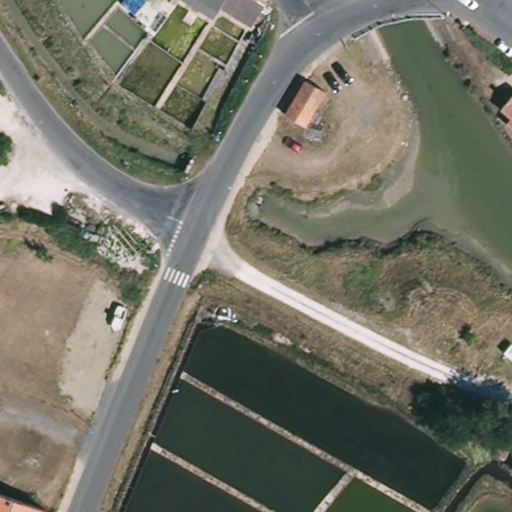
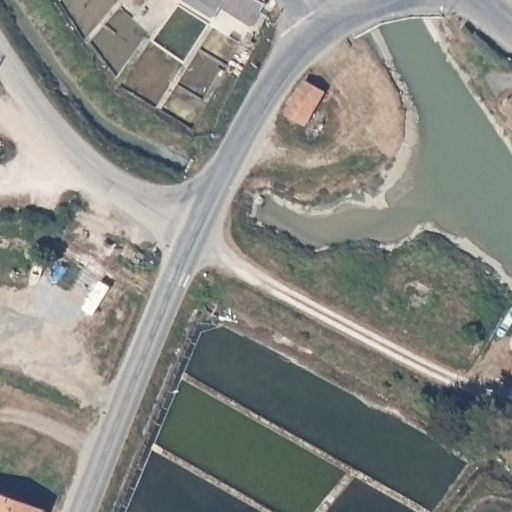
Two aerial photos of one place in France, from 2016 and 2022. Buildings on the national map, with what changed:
unchanged [(225,4),(219,18),(215,16),(185,2),(185,0),(269,0),(258,17),(225,4)]
unchanged [(322,91),(312,110),(326,119),(319,130),(284,110),(301,80),(322,91)]
unchanged [(512,95),(512,132),(511,133),(501,121),(508,113),(502,108),(512,95)]
unchanged [(2,489),(0,494),(0,488),(2,489)]
unchanged [(36,512),(0,512),(0,499),(36,512)]

